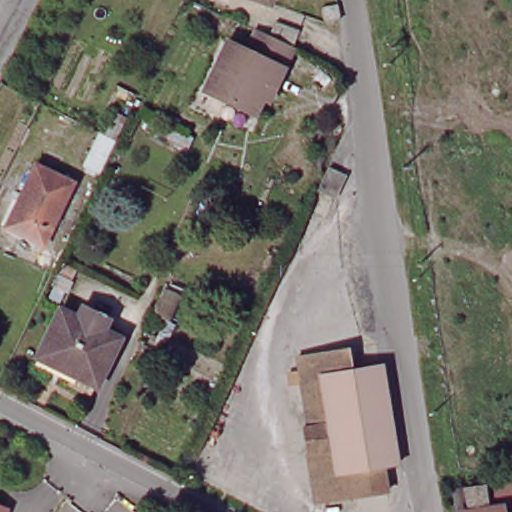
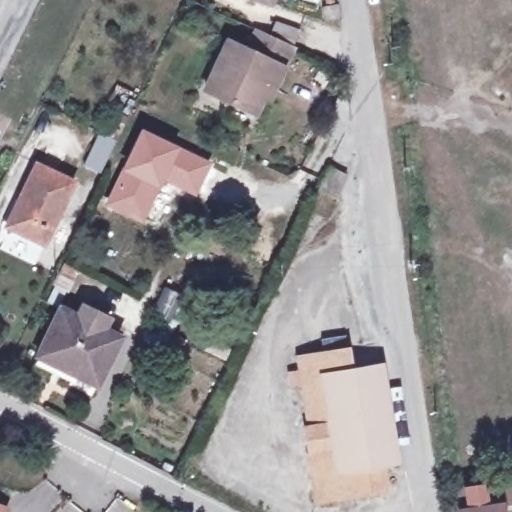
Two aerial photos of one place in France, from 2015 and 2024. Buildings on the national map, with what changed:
unchanged [(269,0),(273,0),(272,1),(269,0)]
unchanged [(327,8),(342,5),(344,19),(328,22),(327,8)]
unchanged [(280,22),(302,32),(295,47),(283,72),(275,90),(270,88),(257,115),(207,91),(230,44),(249,53),(260,31),(273,37),(280,22)]
new [(140,127),(180,146),(165,182),(143,224),(103,205),(140,127)]
unchanged [(88,167),(105,134),(120,141),(105,174),(88,167)]
new [(180,146),(213,162),(197,197),(165,182),(180,146)]
unchanged [(42,165),(78,183),(49,245),(12,227),(42,165)]
unchanged [(335,168),(351,176),(340,198),(324,190),(335,168)]
new [(163,285),(190,298),(174,330),(149,318),(163,285)]
unchanged [(67,383),(72,372),(37,356),(60,311),(75,318),(81,308),(105,319),(100,330),(119,339),(91,395),(67,383)]
unchanged [(310,428),(297,359),(348,350),(352,368),(379,364),(397,464),(384,466),(390,491),(318,504),(310,454),(305,429),(310,428)]
unchanged [(512,506),(510,506),(511,512),(466,512),(463,490),(512,484),(512,506)]
unchanged [(9,511),(9,512),(0,512),(0,508),(9,511)]

